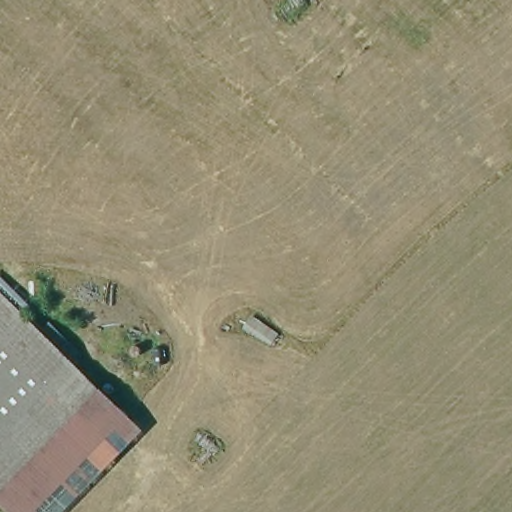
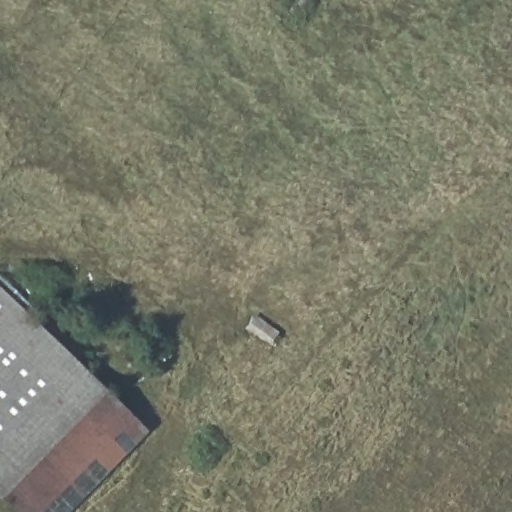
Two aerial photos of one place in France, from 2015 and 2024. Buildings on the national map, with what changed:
unchanged [(0,511),(0,288),(146,431),(63,512),(1,512),(0,511)]

